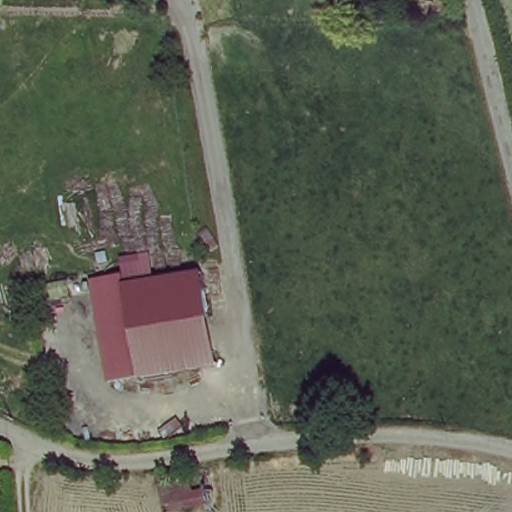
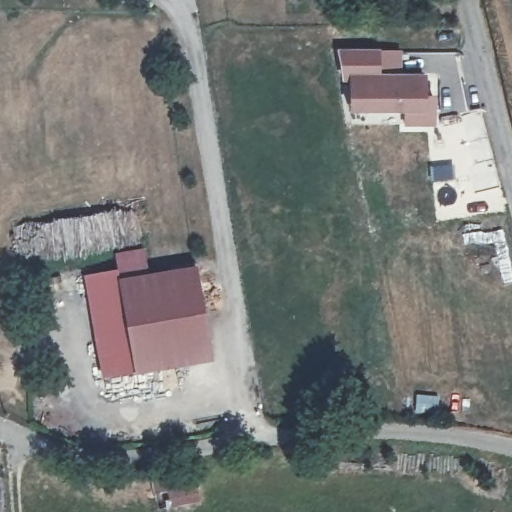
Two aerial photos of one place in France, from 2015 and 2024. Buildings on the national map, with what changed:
new [(379,49),(379,74),(425,74),(425,96),(435,96),(435,128),(404,126),(404,113),(348,113),(347,83),(341,82),(336,50),(379,49)]
unchanged [(90,286),(88,273),(113,269),(115,282),(191,269),(207,360),(117,375),(105,376),(90,286)]
new [(2,491),(0,512),(0,491),(2,491)]

